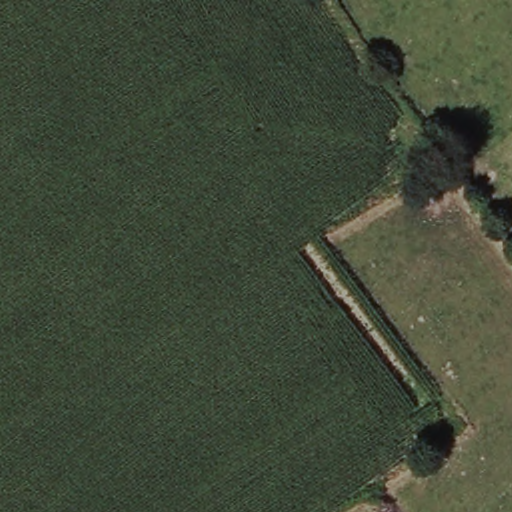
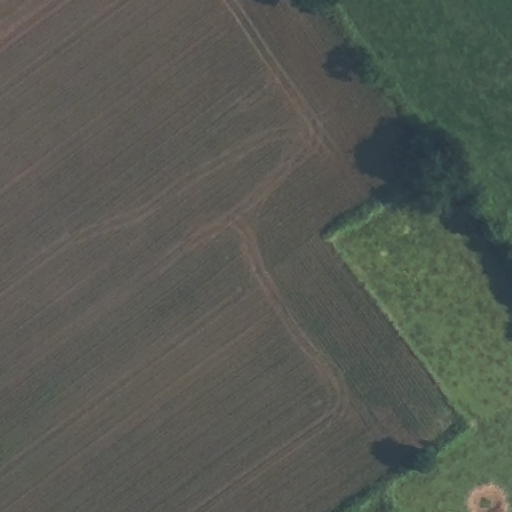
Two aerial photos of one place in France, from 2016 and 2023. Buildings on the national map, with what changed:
[]

